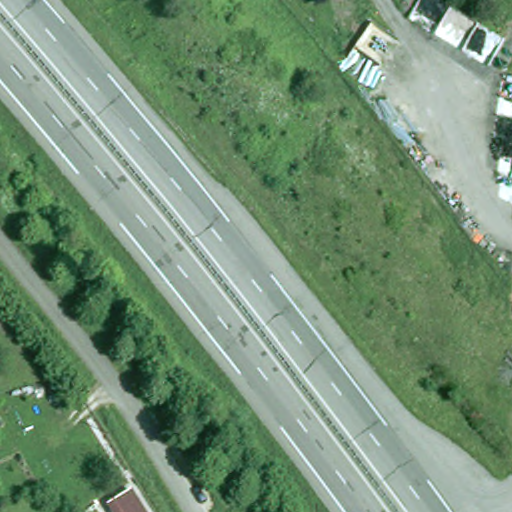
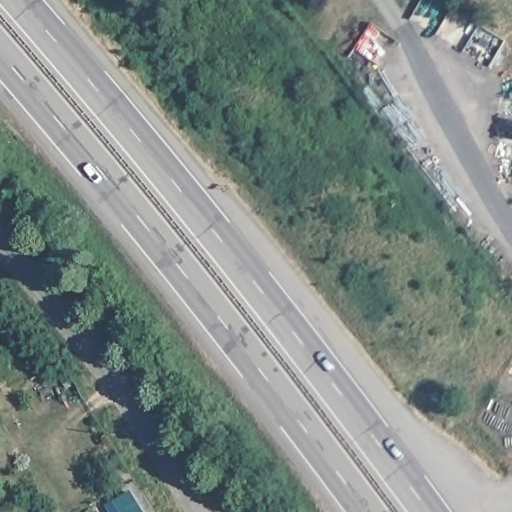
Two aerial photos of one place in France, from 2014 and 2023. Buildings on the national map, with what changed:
unchanged [(138,504),(145,512),(127,512),(138,504)]

